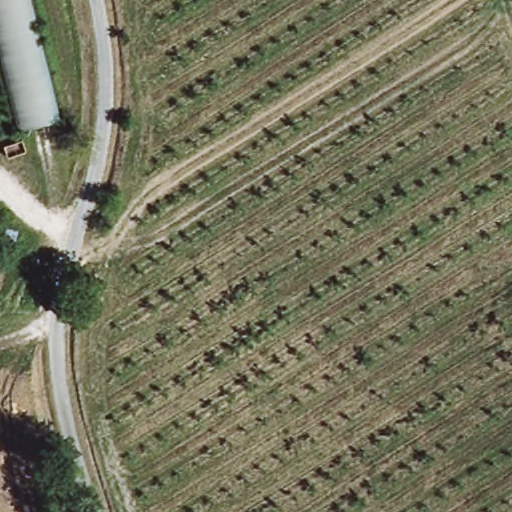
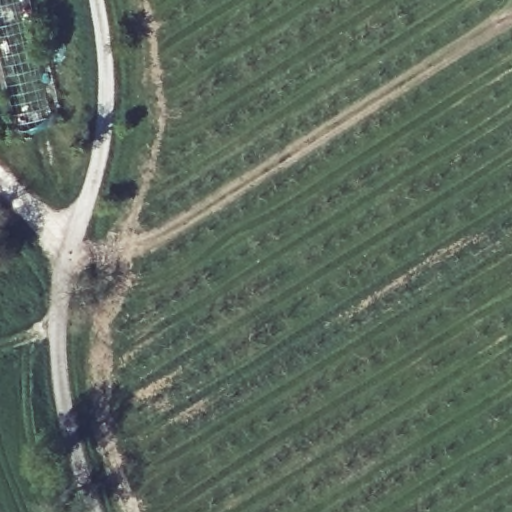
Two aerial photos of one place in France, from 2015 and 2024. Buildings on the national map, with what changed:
unchanged [(0,56),(0,0),(30,0),(57,117),(20,133),(0,56)]

